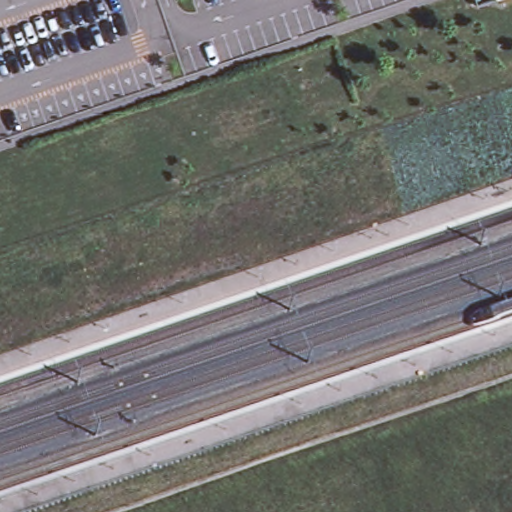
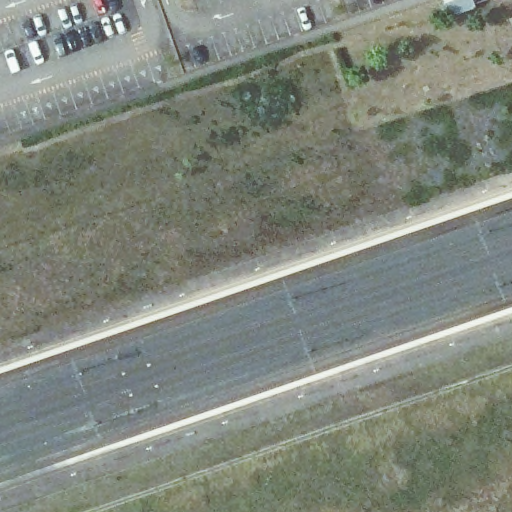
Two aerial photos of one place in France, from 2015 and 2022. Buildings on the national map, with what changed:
unchanged [(477,9),(473,0),(495,0),(495,1),(477,9)]

